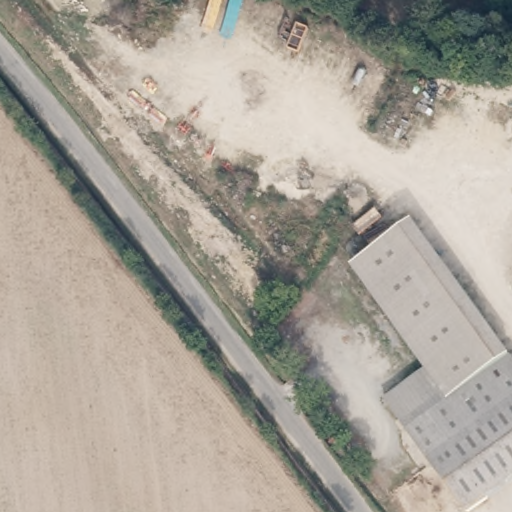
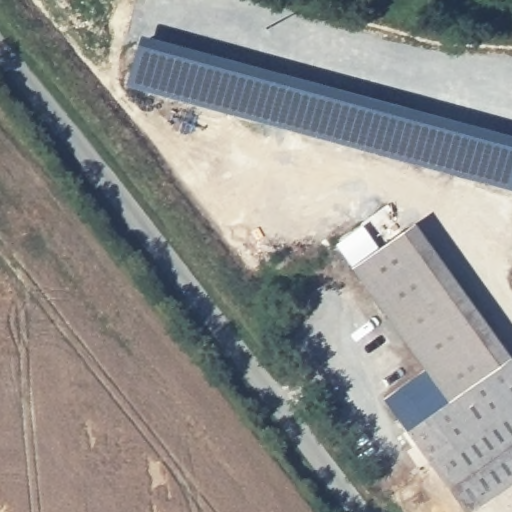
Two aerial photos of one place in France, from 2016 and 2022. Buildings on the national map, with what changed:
new [(137,46),(512,148),(512,190),(126,85),(137,46)]
unchanged [(355,269),(406,231),(504,365),(452,400),(428,370),(355,269)]
unchanged [(452,400),(504,365),(512,360),(512,483),(471,512),(470,512),(388,400),(428,370),(452,400)]

